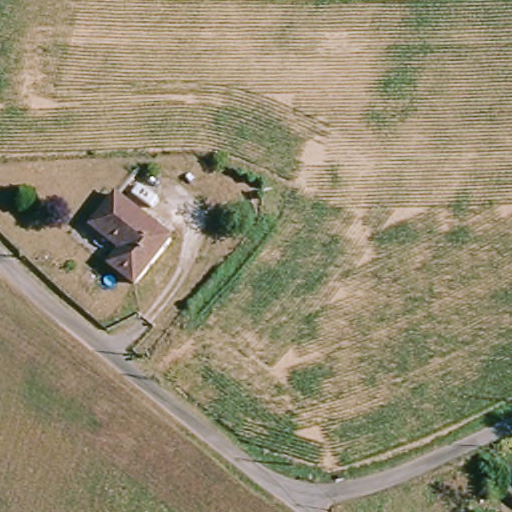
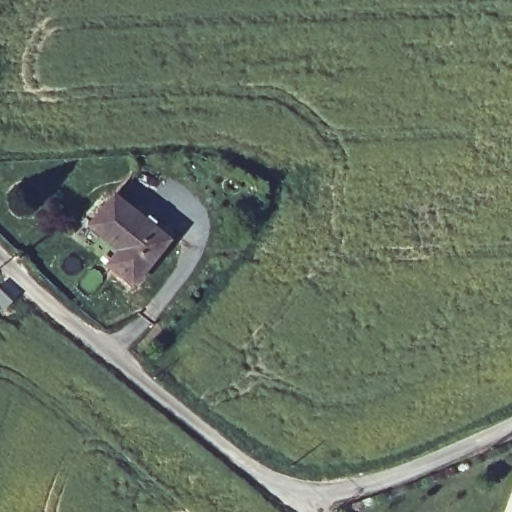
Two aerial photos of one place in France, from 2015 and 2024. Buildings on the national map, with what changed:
unchanged [(90,229),(115,199),(170,244),(134,289),(110,269),(121,254),(90,229)]

